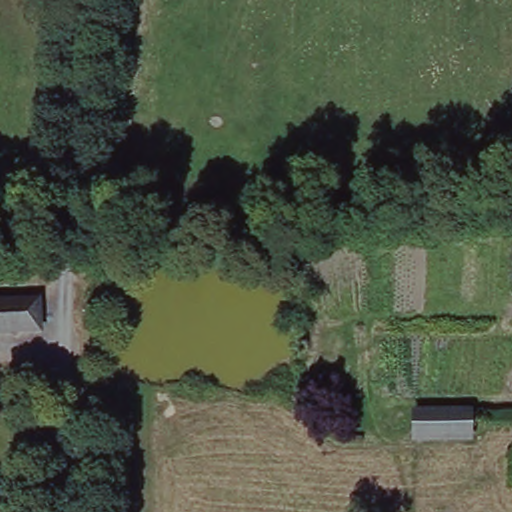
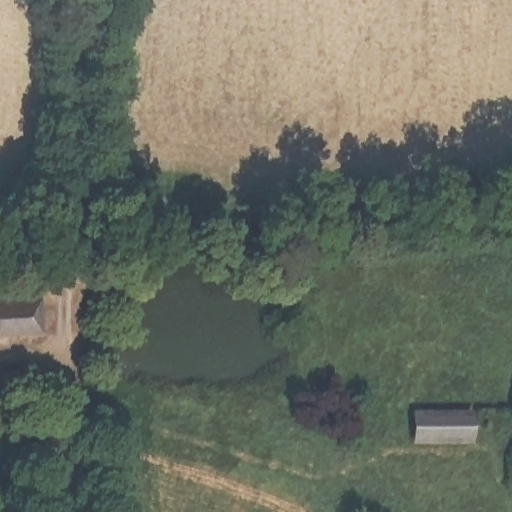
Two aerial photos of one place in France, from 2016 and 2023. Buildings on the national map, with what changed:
unchanged [(52,301),(52,332),(0,334),(0,303),(52,301)]
unchanged [(471,405),(471,443),(411,444),(410,405),(471,405)]

